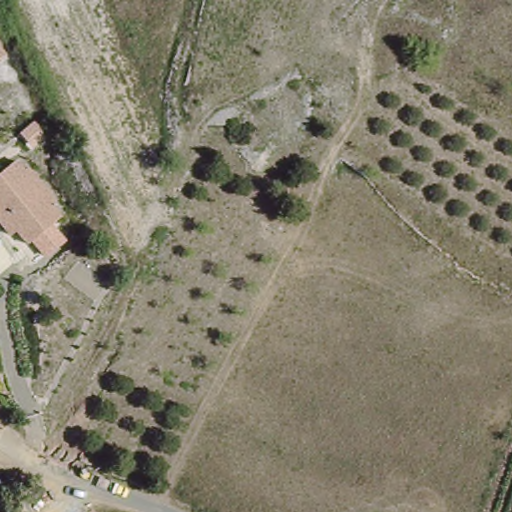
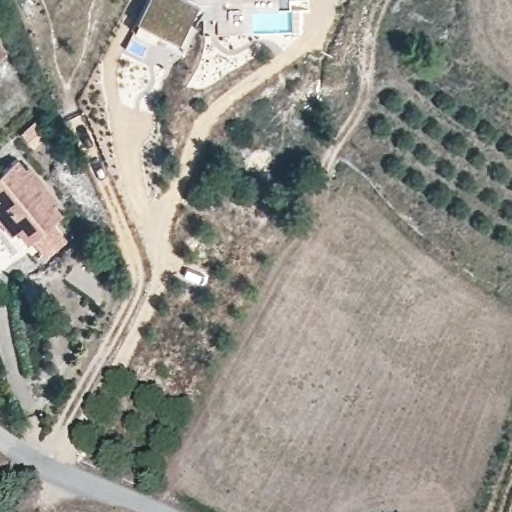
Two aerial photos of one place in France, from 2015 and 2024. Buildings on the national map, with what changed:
new [(189,0),(198,5),(178,42),(136,21),(148,0),(189,0)]
unchanged [(0,63),(0,35),(11,55),(0,63)]
unchanged [(35,249),(0,210),(0,177),(24,161),(73,218),(35,249)]

